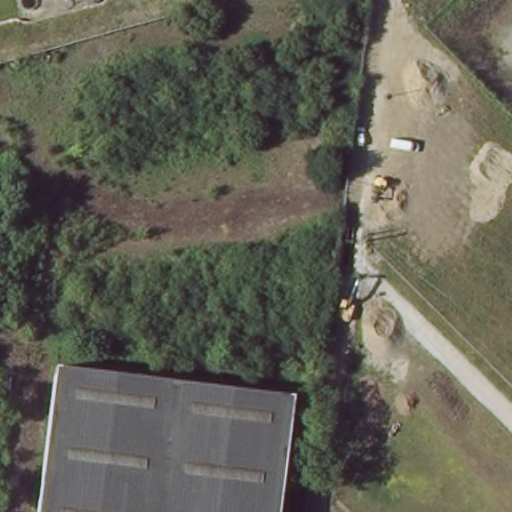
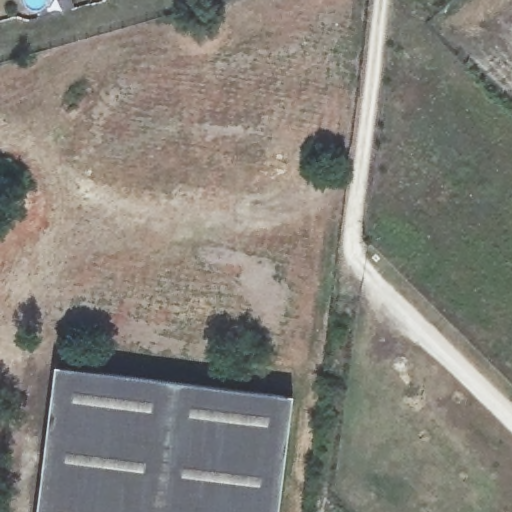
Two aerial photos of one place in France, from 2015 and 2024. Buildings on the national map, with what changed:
unchanged [(37,512),(53,367),(290,397),(276,512),(37,512)]

